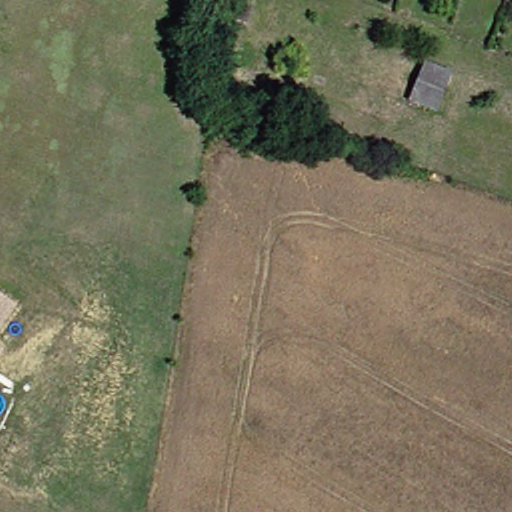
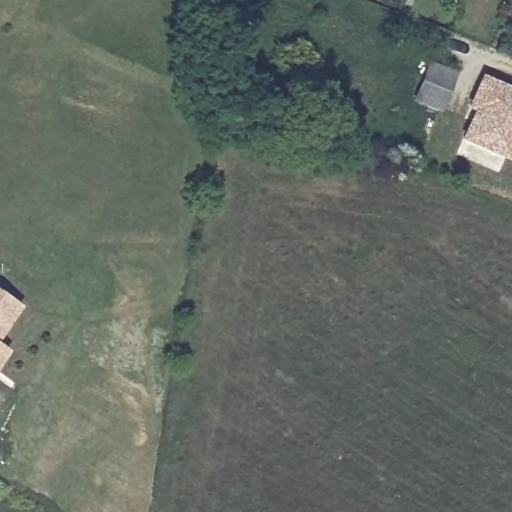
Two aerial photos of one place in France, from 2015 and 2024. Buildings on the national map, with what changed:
unchanged [(233,13),(237,0),(244,0),(258,5),(253,20),(233,13)]
unchanged [(232,67),(236,50),(254,55),(249,72),(232,67)]
unchanged [(455,75),(441,111),(417,101),(431,65),(455,75)]
new [(503,160),(459,139),(473,108),(466,105),(480,74),(512,88),(512,146),(503,160)]
unchanged [(0,328),(0,283),(23,298),(0,328)]
unchanged [(0,339),(7,344),(0,353),(0,339)]

